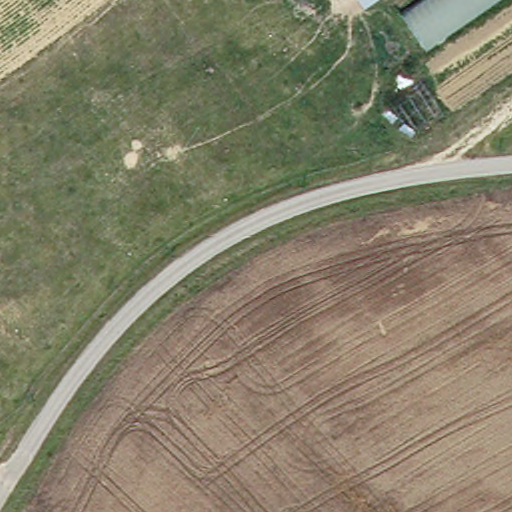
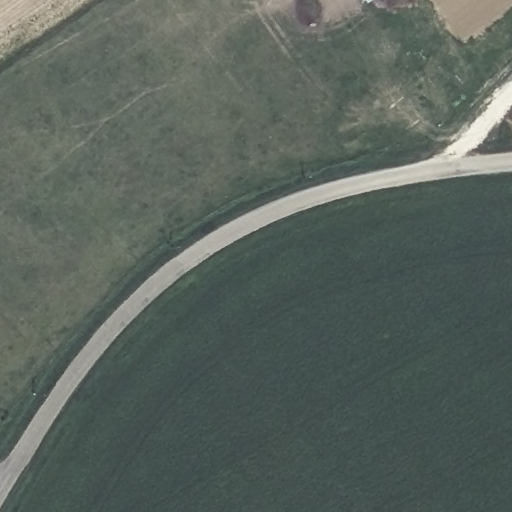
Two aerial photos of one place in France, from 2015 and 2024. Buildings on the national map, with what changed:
unchanged [(369,3),(368,0),(374,0),(369,3)]
demolished [(434,44),(405,2),(408,0),(497,0),(434,44)]

